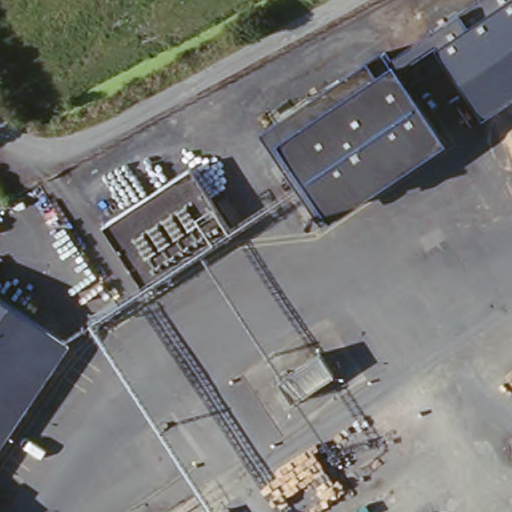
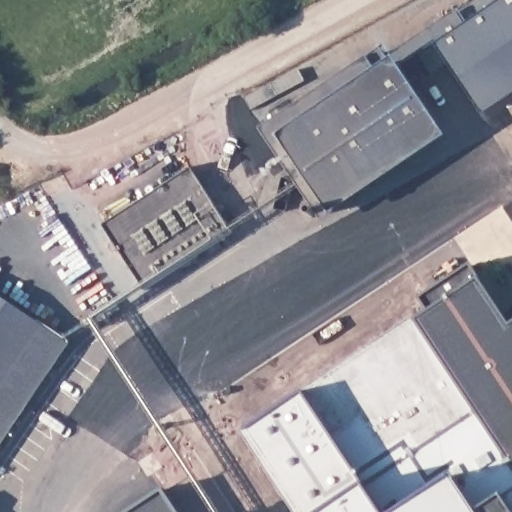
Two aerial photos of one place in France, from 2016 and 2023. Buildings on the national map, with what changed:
unchanged [(452,61),(409,86),(446,141),(322,224),(264,130),(474,0),(512,0),(512,96),(485,115),(452,61)]
unchanged [(192,170),(232,237),(141,293),(101,227),(192,170)]
new [(512,325),(512,512),(311,512),(257,428),(482,283),(512,325)]
unchanged [(65,346),(0,440),(0,300),(65,346)]
demolished [(313,354),(326,375),(285,401),(272,381),(313,354)]
new [(180,512),(145,512),(169,497),(180,512)]
demolished [(216,512),(227,505),(231,512),(216,512)]

